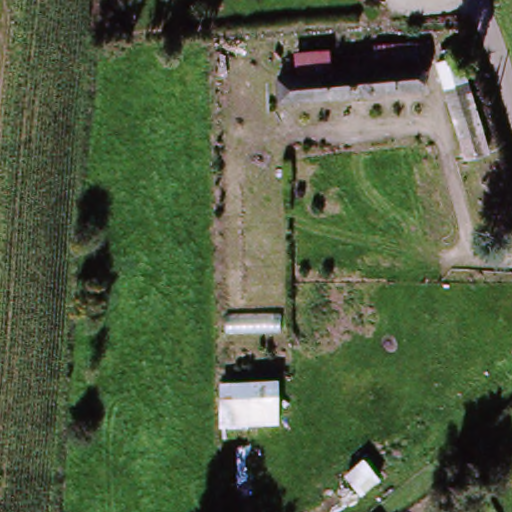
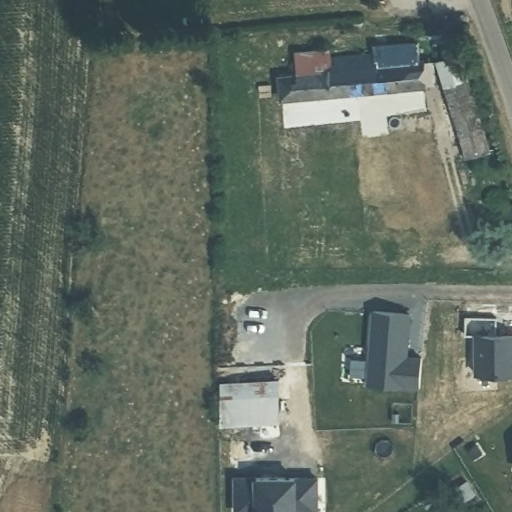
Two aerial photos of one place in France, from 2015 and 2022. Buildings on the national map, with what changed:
unchanged [(443,58),(458,53),(462,66),(469,63),(482,122),(462,129),(443,58)]
unchanged [(377,55),(422,54),(422,65),(423,98),(354,101),(352,68),(377,67),(377,55)]
unchanged [(280,70),(299,69),(299,61),(330,60),(330,69),(352,68),(354,101),(304,103),(282,104),(280,70)]
new [(412,311),(409,356),(423,357),(420,388),(367,384),(371,310),(412,311)]
new [(512,375),(477,375),(475,329),(512,329),(512,375)]
unchanged [(284,426),(218,430),(215,380),(277,376),(284,426)]
demolished [(340,473),(362,453),(383,478),(337,512),(297,512),(347,479),(340,473)]
new [(317,509),(296,510),(296,512),(257,512),(257,509),(235,510),(235,475),(317,476),(317,509)]

